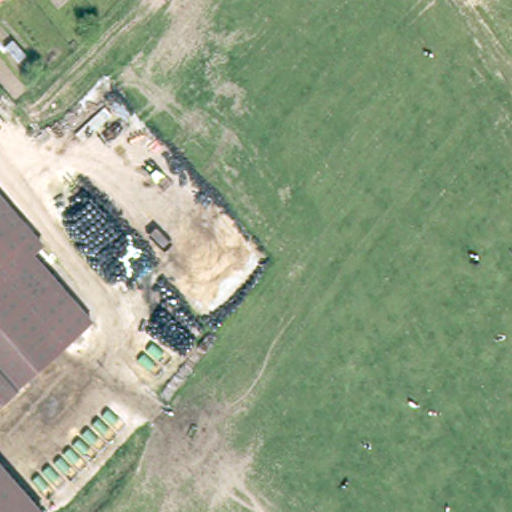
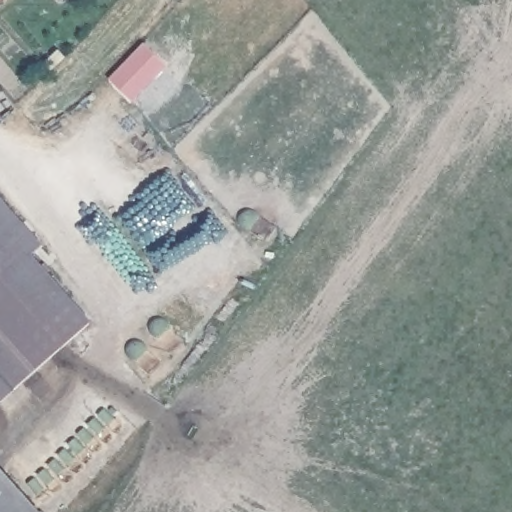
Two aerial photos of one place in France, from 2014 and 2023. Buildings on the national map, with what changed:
new [(168,65),(134,102),(108,80),(143,42),(168,65)]
unchanged [(0,288),(0,203),(38,243),(29,253),(88,316),(56,348),(0,288)]
unchanged [(56,348),(0,402),(0,288),(56,348)]
unchanged [(50,512),(0,512),(0,460),(50,512)]

